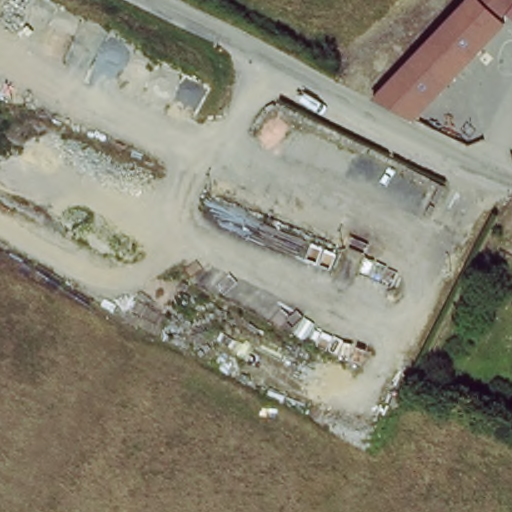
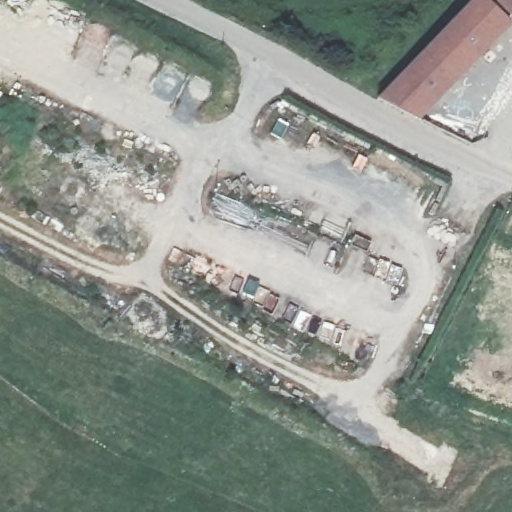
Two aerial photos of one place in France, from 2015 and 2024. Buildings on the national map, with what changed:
unchanged [(471,0),(512,0),(512,15),(510,17),(423,120),(381,97),(471,0)]
unchanged [(510,17),(512,15),(512,18),(510,17)]

